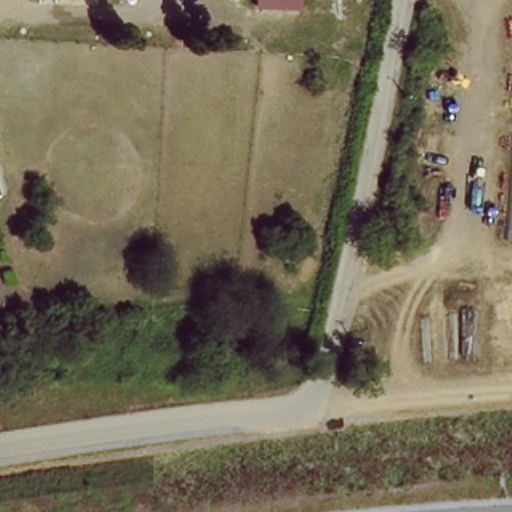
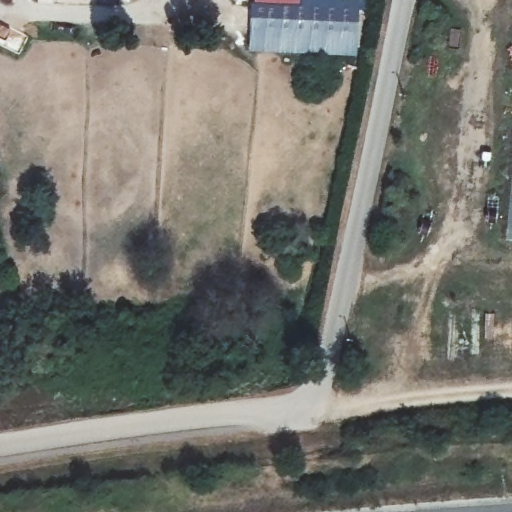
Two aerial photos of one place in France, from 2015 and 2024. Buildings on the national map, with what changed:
new [(250,17),(300,17),(300,0),(361,0),(357,55),(249,51),(250,17)]
new [(252,0),(300,0),(300,17),(250,17),(252,0)]
unchanged [(512,173),(512,234),(507,234),(512,173)]

